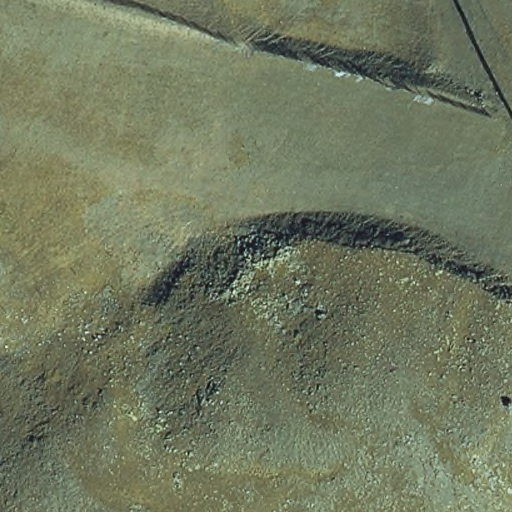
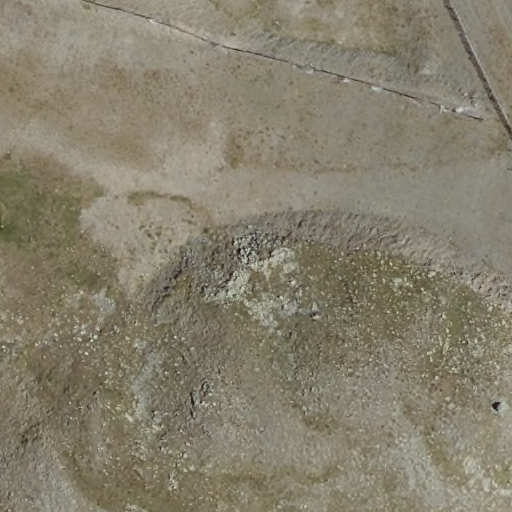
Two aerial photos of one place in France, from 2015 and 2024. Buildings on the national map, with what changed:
[]

